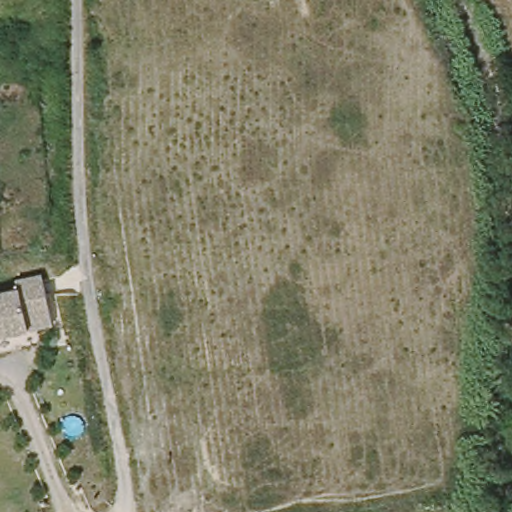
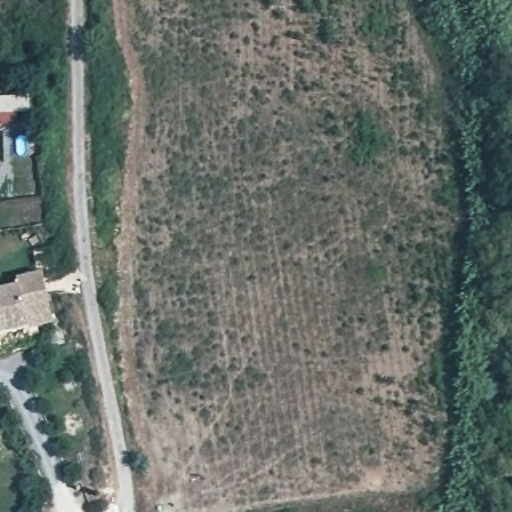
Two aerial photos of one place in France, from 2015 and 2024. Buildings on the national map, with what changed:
unchanged [(27,328),(0,335),(0,291),(16,287),(15,279),(40,273),(50,313),(51,323),(27,328)]

